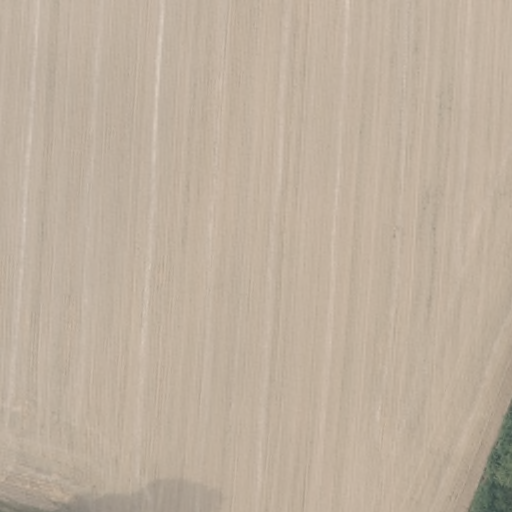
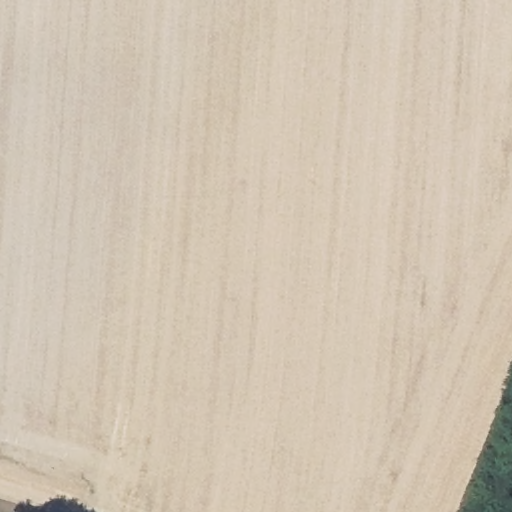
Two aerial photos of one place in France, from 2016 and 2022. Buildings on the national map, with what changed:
[]

